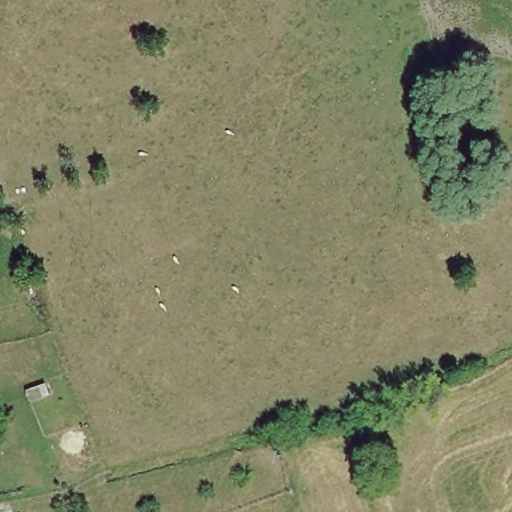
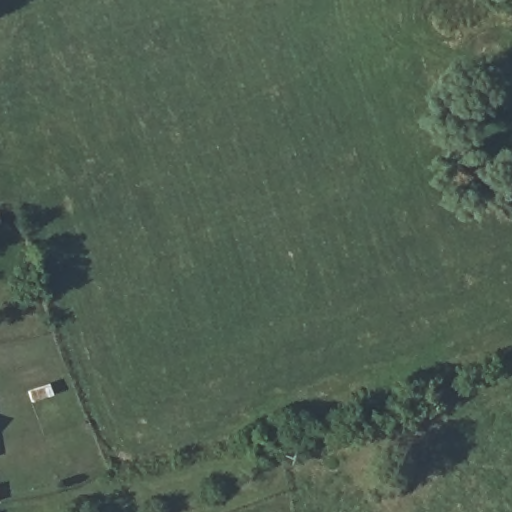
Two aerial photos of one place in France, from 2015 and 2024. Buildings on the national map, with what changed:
[]

